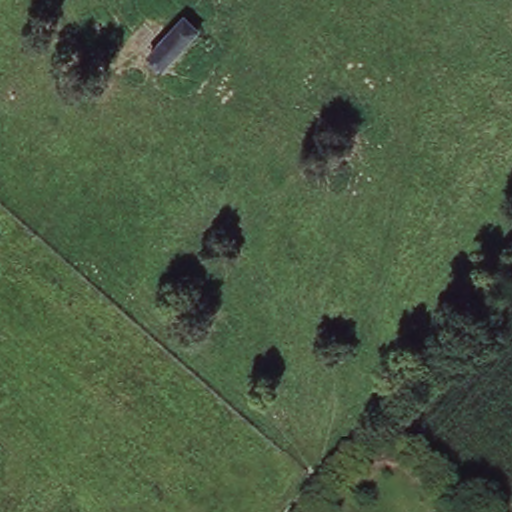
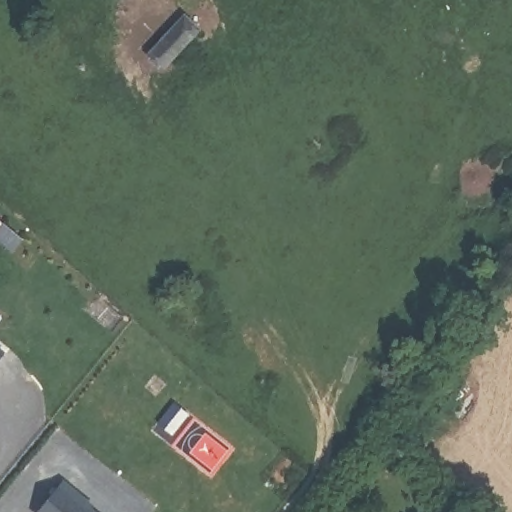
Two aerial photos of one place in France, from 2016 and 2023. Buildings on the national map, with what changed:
unchanged [(186,14),(202,31),(166,66),(151,50),(186,14)]
new [(76,495),(73,499),(91,512),(38,512),(62,483),(76,495)]

